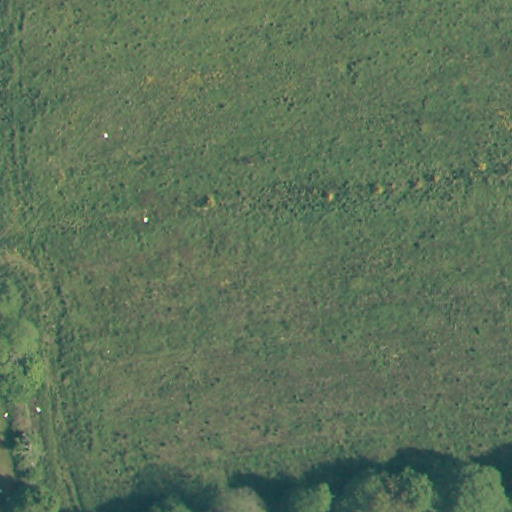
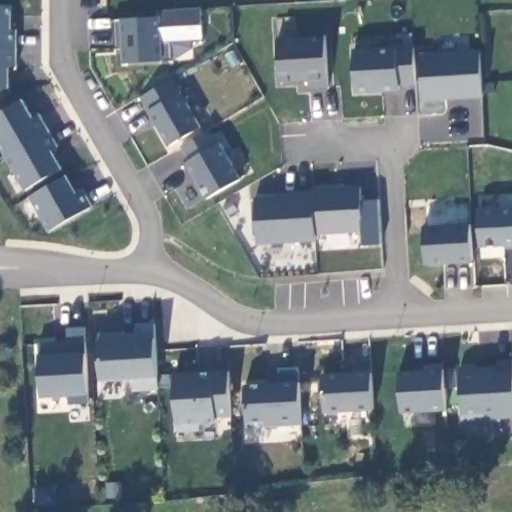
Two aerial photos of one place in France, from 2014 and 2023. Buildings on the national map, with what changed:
new [(10,4),(10,29),(16,29),(16,47),(0,47),(0,4),(10,4)]
new [(121,18),(158,16),(157,9),(202,7),(203,40),(170,42),(171,60),(123,64),(123,48),(115,48),(113,21),(121,18)]
new [(327,35),(329,87),(310,89),(309,81),(280,83),(277,38),(327,35)]
new [(415,84),(400,85),(400,90),(355,93),(353,49),(397,46),(414,45),(415,84)]
new [(16,47),(16,65),(8,65),(8,86),(0,86),(0,47),(16,47)]
new [(481,51),(483,98),(423,100),(420,54),(481,51)]
new [(172,78),(203,127),(170,150),(140,99),(172,78)]
new [(22,99),(32,118),(39,114),(48,129),(5,154),(0,145),(0,112),(22,99)]
new [(48,129),(57,145),(50,149),(61,168),(25,188),(5,154),(48,129)]
new [(189,158),(181,147),(207,130),(215,141),(218,140),(241,179),(206,201),(184,162),(189,158)]
new [(65,175),(76,193),(83,189),(92,205),(49,230),(29,195),(65,175)]
new [(363,232),(318,235),(314,192),(314,188),(361,185),(363,232)]
new [(314,192),(318,235),(319,240),(257,243),(255,196),(314,192)]
new [(512,245),(479,247),(476,208),(512,207),(512,245)]
new [(468,222),(472,261),(427,264),(424,225),(468,222)]
new [(134,390),(134,378),(101,379),(99,335),(124,333),(124,340),(138,339),(137,325),(155,323),(158,388),(134,390)]
new [(69,395),(41,397),(39,352),(38,341),(67,340),(67,328),(86,328),(87,351),(90,395),(91,404),(71,404),(69,395)]
new [(497,360),(512,360),(512,418),(486,418),(486,424),(460,425),(460,368),(497,367),(497,360)]
new [(267,382),(267,378),(280,377),(280,370),(298,368),(299,381),(303,423),(267,427),(264,422),(247,423),(243,384),(267,382)]
new [(445,368),(447,410),(402,413),(400,372),(445,368)]
new [(231,416),(217,417),(216,423),(199,423),(200,431),(178,432),(177,425),(175,374),(229,371),(231,416)]
new [(373,410),(325,413),(323,374),(372,371),(373,410)]

